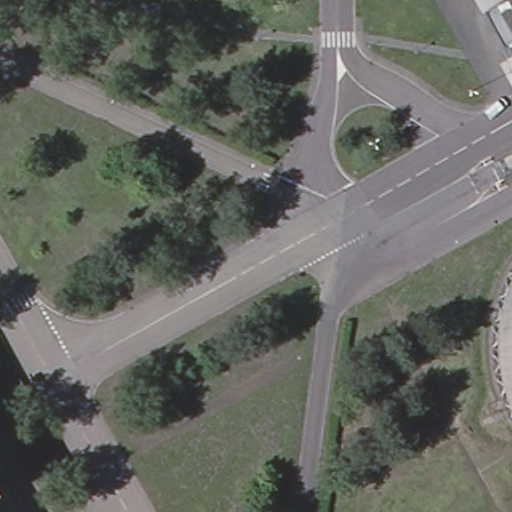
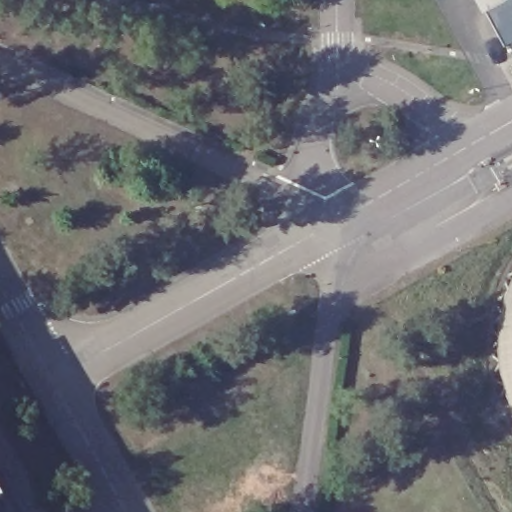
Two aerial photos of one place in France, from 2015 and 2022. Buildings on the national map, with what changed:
unchanged [(512,0),(512,58),(488,10),(510,0),(512,0)]
unchanged [(504,317),(512,287),(512,403),(502,370),(504,317)]
unchanged [(15,512),(0,512),(0,485),(15,512)]

